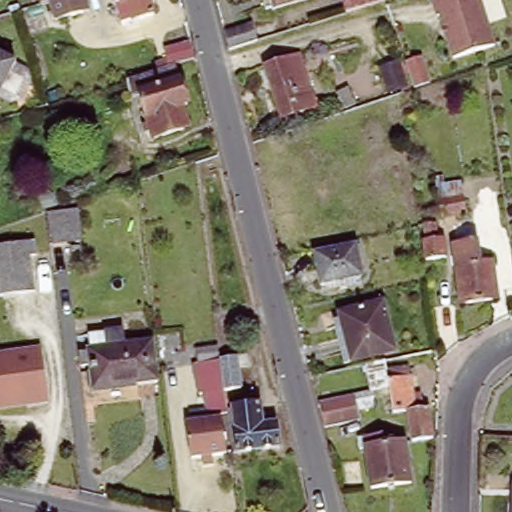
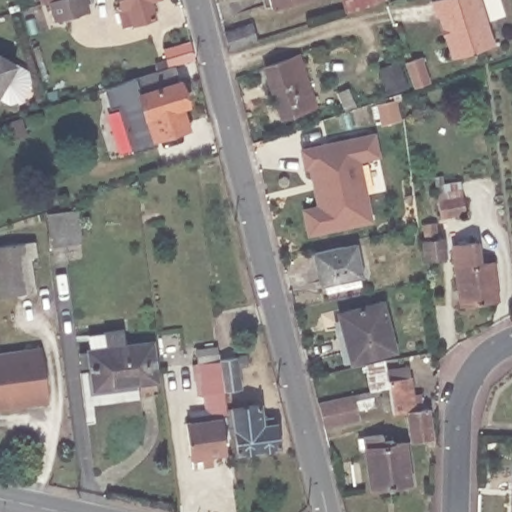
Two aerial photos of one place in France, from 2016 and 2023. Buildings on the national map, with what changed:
unchanged [(54,21),(49,3),(48,0),(85,0),(88,11),(54,21)]
unchanged [(150,11),(118,21),(112,2),(117,0),(146,0),(150,11)]
unchanged [(271,0),(288,0),(272,5),(271,0)]
unchanged [(375,5),(358,10),(343,15),(339,0),(374,0),(375,5)]
unchanged [(495,37),(455,50),(441,7),(439,8),(436,0),(483,0),(495,37)]
unchanged [(228,51),(224,33),(252,25),(257,42),(228,51)]
unchanged [(0,109),(0,53),(23,67),(0,109)]
unchanged [(165,62),(188,55),(193,69),(170,76),(165,62)]
unchanged [(303,56),(321,107),(286,119),(268,68),(303,56)]
unchanged [(408,89),(390,94),(383,71),(401,66),(408,89)]
unchanged [(417,75),(429,72),(431,80),(420,83),(417,75)]
unchanged [(175,77),(187,116),(178,119),(185,140),(155,149),(152,141),(146,143),(145,136),(150,134),(141,105),(133,107),(128,94),(135,91),(138,89),(163,81),(175,77)]
new [(310,167),(305,168),(301,151),(374,136),(378,157),(358,161),(371,221),(309,234),(304,210),(318,207),(313,181),(310,167)]
unchanged [(441,204),(466,199),(469,213),(443,217),(441,204)]
unchanged [(77,214),(80,242),(52,245),(49,217),(77,214)]
unchanged [(450,249),(453,267),(433,270),(430,251),(432,251),(430,237),(442,235),(444,249),(450,249)]
unchanged [(34,294),(0,299),(0,248),(35,244),(36,251),(29,252),(34,294)]
unchanged [(320,255),(361,246),(367,277),(326,286),(320,255)]
unchanged [(506,309),(468,315),(460,257),(485,254),(488,275),(501,273),(506,309)]
unchanged [(341,315),(384,304),(396,352),(354,363),(341,315)]
unchanged [(162,388),(154,389),(98,396),(96,379),(95,371),(85,373),(84,360),(93,359),(93,357),(110,355),(108,342),(129,340),(130,352),(157,349),(162,388)]
unchanged [(0,350),(40,345),(48,401),(0,407),(0,350)]
unchanged [(215,396),(208,397),(207,389),(200,390),(198,377),(201,377),(198,359),(220,357),(220,354),(247,350),(248,355),(249,361),(237,363),(241,385),(224,388),(226,407),(216,408),(215,396)]
unchanged [(393,404),(390,383),(390,376),(403,373),(404,380),(411,378),(416,413),(428,410),(434,440),(415,444),(410,413),(407,414),(395,415),(393,404)]
unchanged [(320,403),(373,392),(375,398),(356,401),(360,416),(360,419),(325,427),(320,403)]
unchanged [(262,414),(267,413),(268,422),(276,421),(280,444),(239,450),(232,406),(260,402),(262,414)]
unchanged [(212,462),(203,463),(202,456),(191,458),(186,423),(221,418),(226,453),(211,455),(212,462)]
unchanged [(383,442),(393,440),(393,445),(406,444),(411,485),(372,490),(365,439),(382,436),(383,442)]

